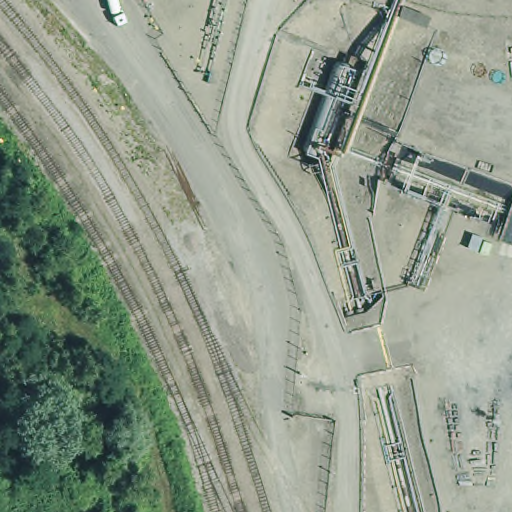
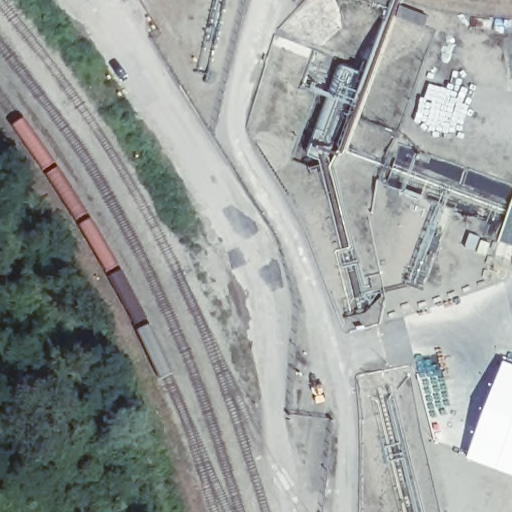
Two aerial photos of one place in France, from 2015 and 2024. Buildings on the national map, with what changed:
new [(512,362),(512,475),(466,458),(504,359),(512,362)]

